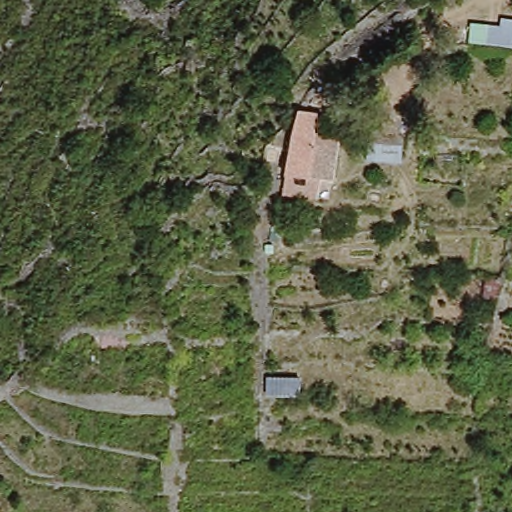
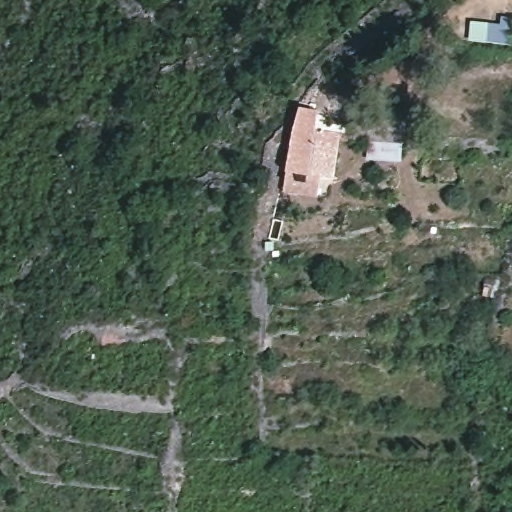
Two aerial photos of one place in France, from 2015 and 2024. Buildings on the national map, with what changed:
unchanged [(512,17),(512,46),(467,41),(470,21),(501,24),(502,16),(512,17)]
unchanged [(287,181),(290,162),(295,124),(303,104),(321,107),(320,119),(342,122),(337,168),(325,167),(322,186),(287,181)]
unchanged [(390,147),(389,160),(362,157),(363,143),(390,147)]

